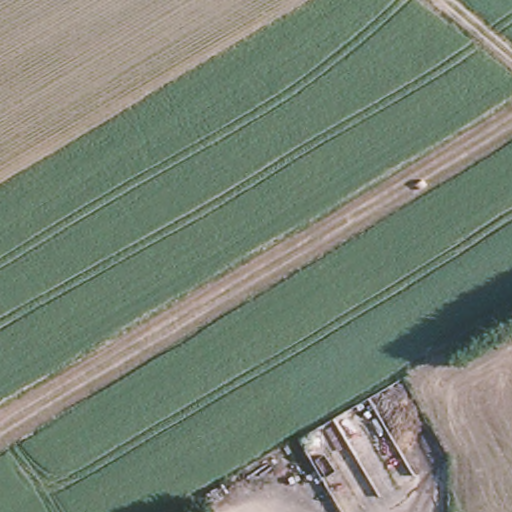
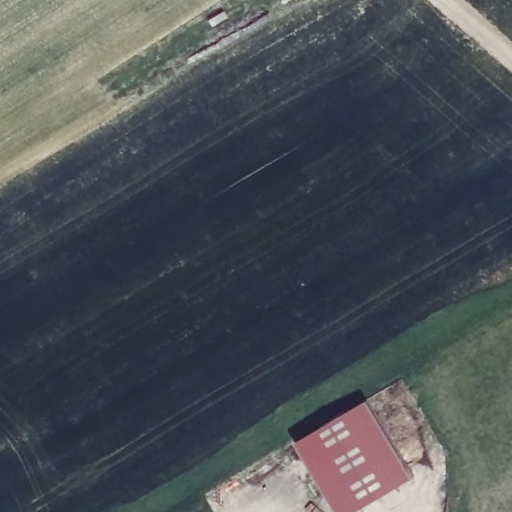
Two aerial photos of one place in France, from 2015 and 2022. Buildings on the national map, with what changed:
new [(357,512),(337,512),(296,443),(368,401),(414,478),(357,512)]

